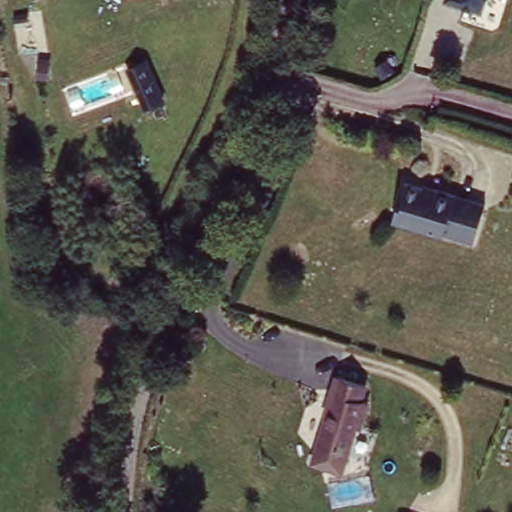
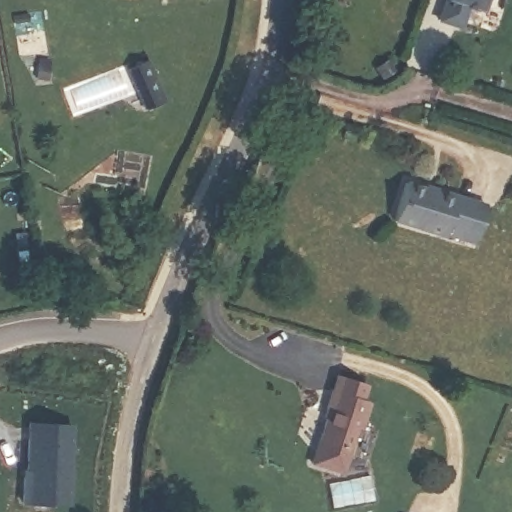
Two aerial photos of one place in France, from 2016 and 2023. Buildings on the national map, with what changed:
unchanged [(485,9),(471,7),(463,30),(437,23),(443,0),(487,0),(485,9)]
unchanged [(49,79),(33,77),(35,53),(52,55),(49,79)]
unchanged [(172,100),(146,113),(124,66),(152,56),(172,100)]
unchanged [(445,236),(444,240),(393,230),(403,191),(430,196),(430,192),(452,196),(488,203),(486,209),(477,243),(445,236)]
unchanged [(340,473),(308,463),(316,442),(328,409),(325,407),(334,380),(365,389),(362,401),(368,403),(360,431),(352,429),(349,452),(340,473)]
new [(71,508),(24,505),(27,423),(72,423),(71,508)]

